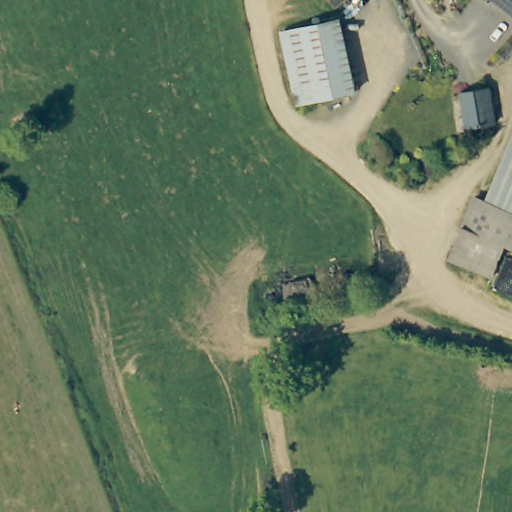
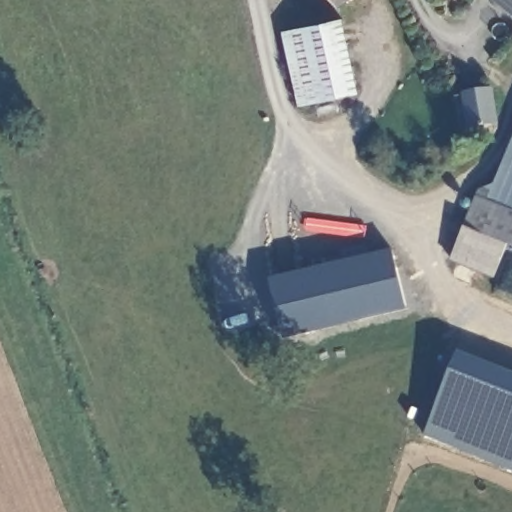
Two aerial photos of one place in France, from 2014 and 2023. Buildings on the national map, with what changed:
unchanged [(347,0),(338,7),(333,0),(347,0)]
unchanged [(512,0),(512,12),(497,0),(512,0)]
unchanged [(281,34),(341,20),(358,93),(298,106),(281,34)]
unchanged [(475,124),(466,124),(460,88),(490,83),(496,120),(491,121),(492,130),(476,133),(475,124)]
unchanged [(483,197),(512,125),(512,209),(509,208),(483,197)]
unchanged [(512,209),(512,242),(502,239),(488,272),(445,254),(471,192),(483,197),(509,208),(512,209)]
new [(407,309),(359,322),(285,340),(270,282),(343,263),(341,254),(366,247),(368,257),(393,250),(397,268),(407,309)]
new [(512,474),(425,439),(459,352),(512,373),(512,474)]

